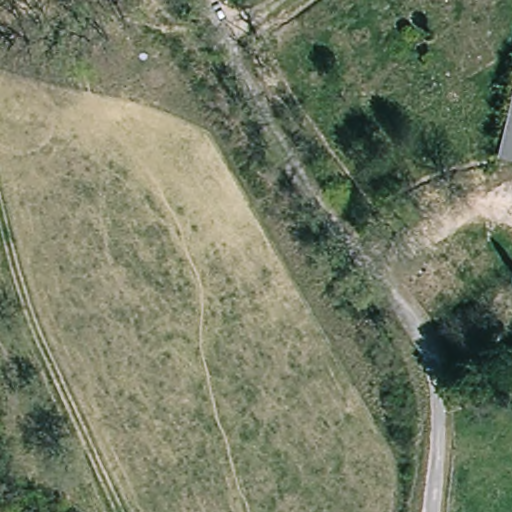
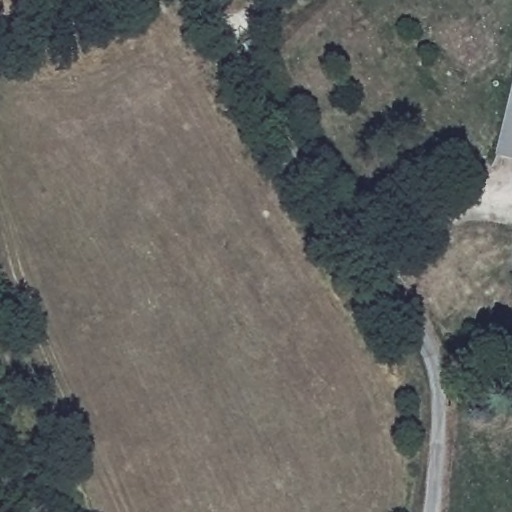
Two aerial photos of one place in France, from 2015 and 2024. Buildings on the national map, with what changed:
unchanged [(512,143),(500,141),(512,94),(512,143)]

